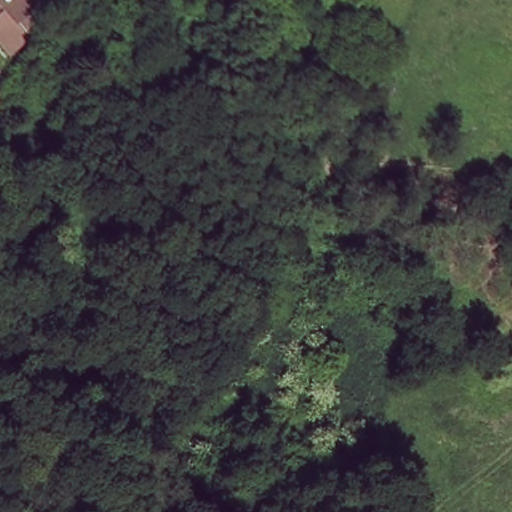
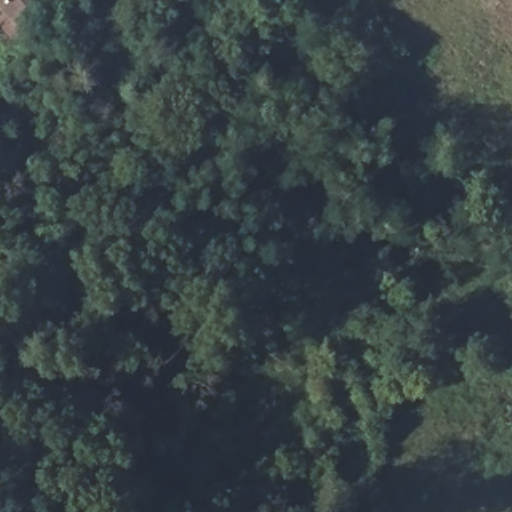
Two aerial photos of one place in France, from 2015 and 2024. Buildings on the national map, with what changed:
unchanged [(30,12),(21,29),(0,4),(0,0),(33,0),(25,7),(30,12)]

